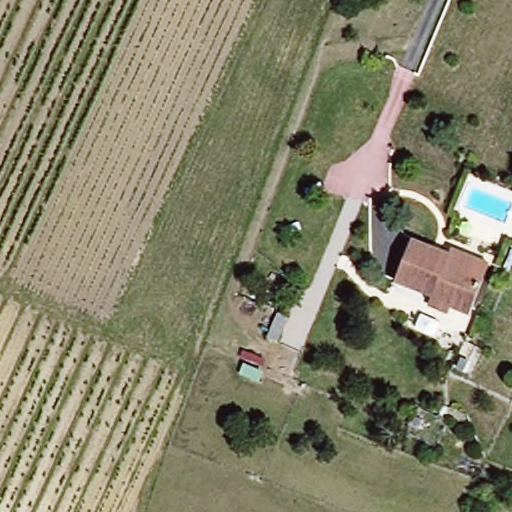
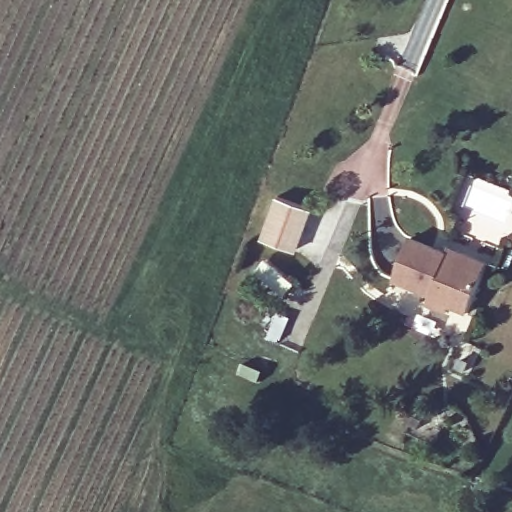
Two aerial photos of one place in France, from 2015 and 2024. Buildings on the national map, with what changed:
new [(296,250),(262,237),(280,194),(312,207),(296,250)]
unchanged [(426,308),(427,300),(428,294),(397,279),(413,237),(447,251),(452,244),(491,262),(484,273),(467,314),(451,308),(448,316),(426,308)]

